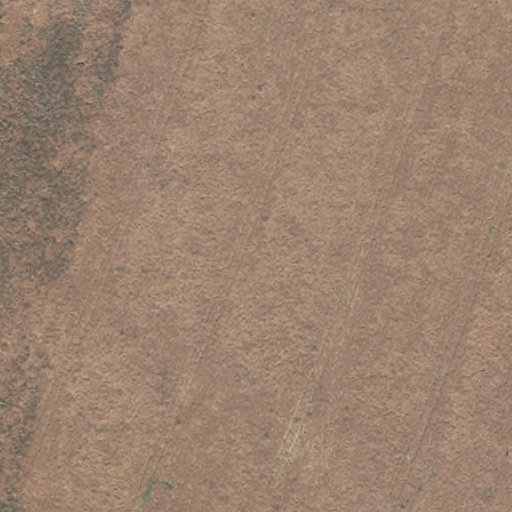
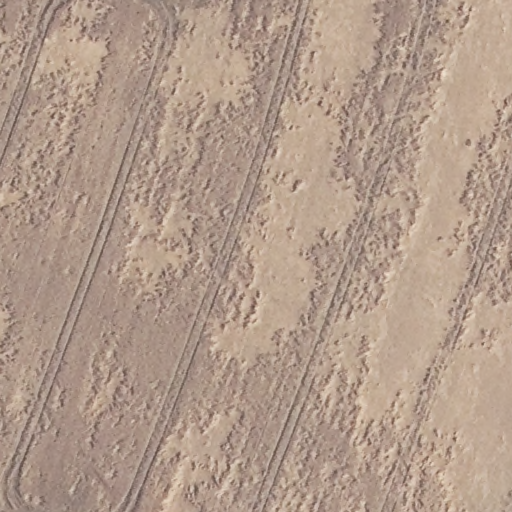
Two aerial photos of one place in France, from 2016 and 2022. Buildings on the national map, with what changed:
[]

